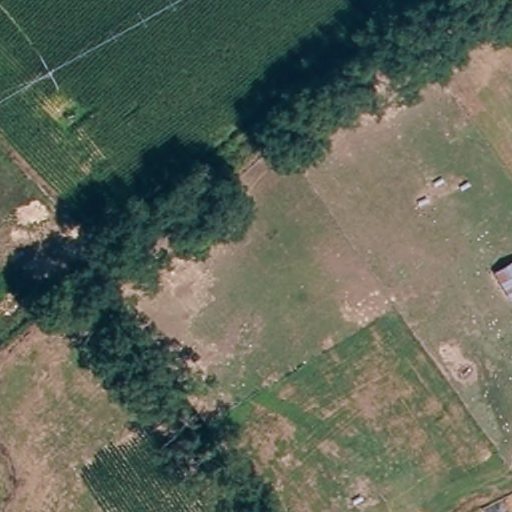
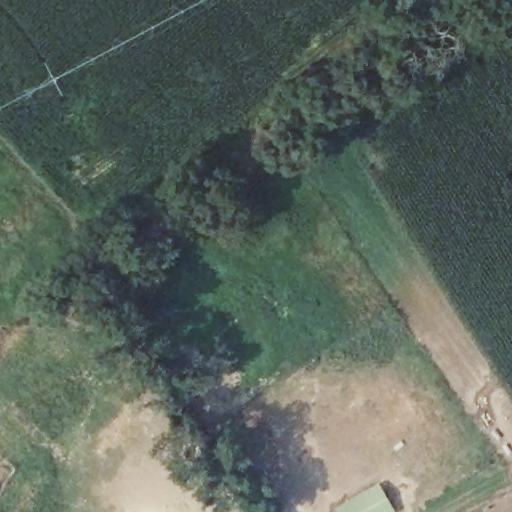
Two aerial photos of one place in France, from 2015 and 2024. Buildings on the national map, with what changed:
new [(338,512),(337,510),(380,487),(394,512),(338,512)]

